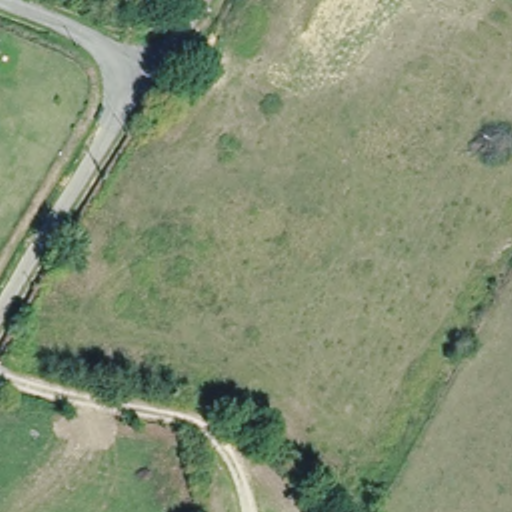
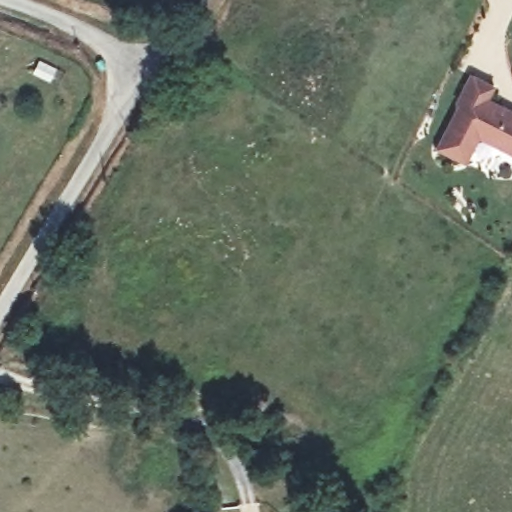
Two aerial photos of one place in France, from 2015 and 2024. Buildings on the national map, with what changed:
new [(435,143),(442,130),(458,99),(456,98),(470,71),(492,82),(485,95),(501,103),(512,109),(512,151),(476,132),(470,144),(463,157),(435,143)]

